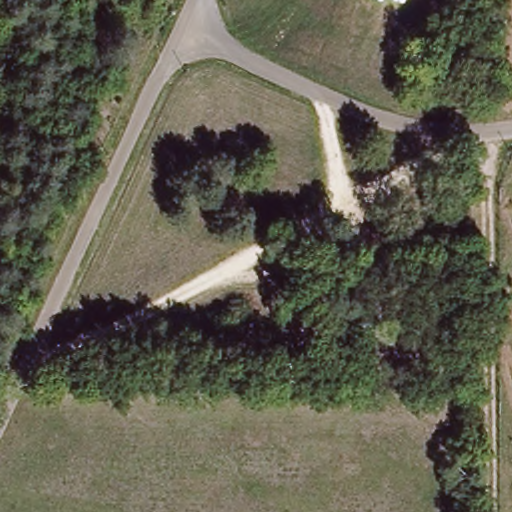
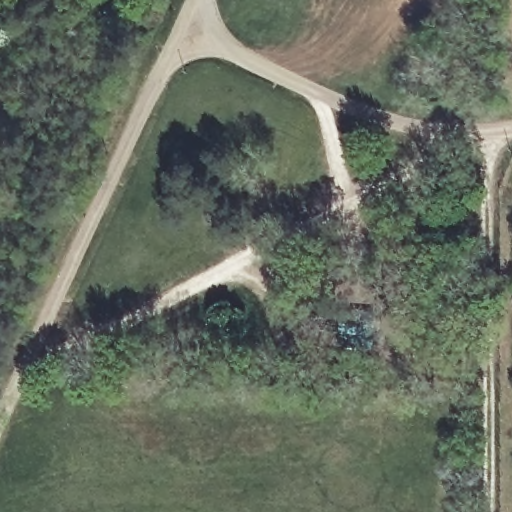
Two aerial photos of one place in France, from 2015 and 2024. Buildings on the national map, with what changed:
unchanged [(367,345),(336,342),(338,323),(368,326),(367,345)]

